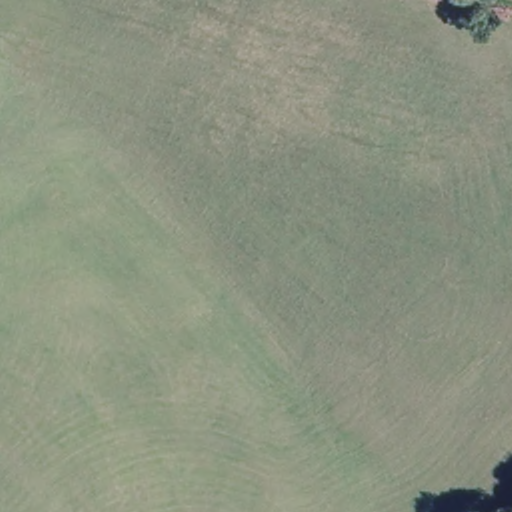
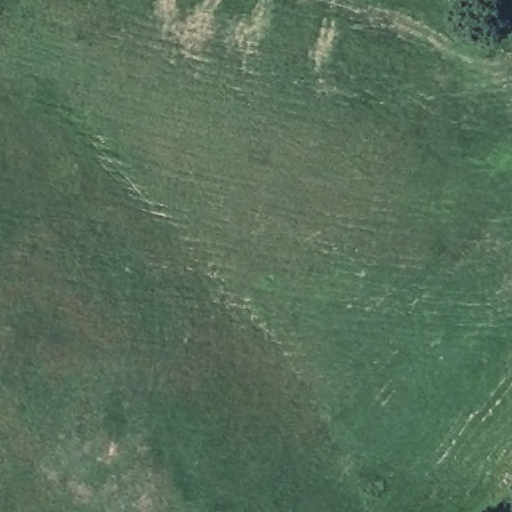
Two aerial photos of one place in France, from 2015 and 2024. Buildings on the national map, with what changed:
[]

